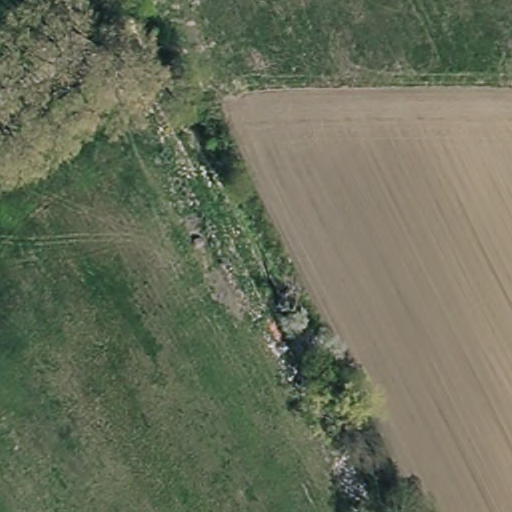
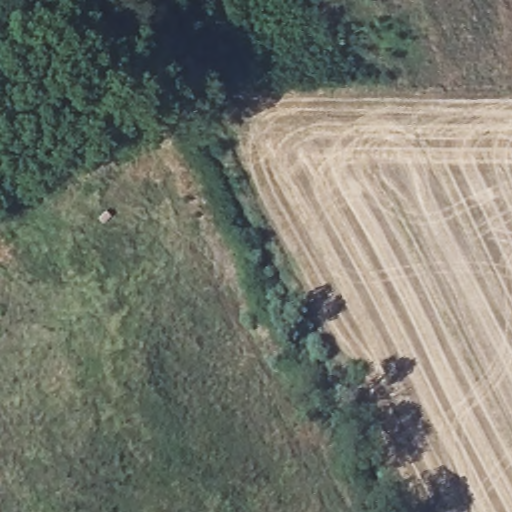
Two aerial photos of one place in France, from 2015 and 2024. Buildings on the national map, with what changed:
[]

